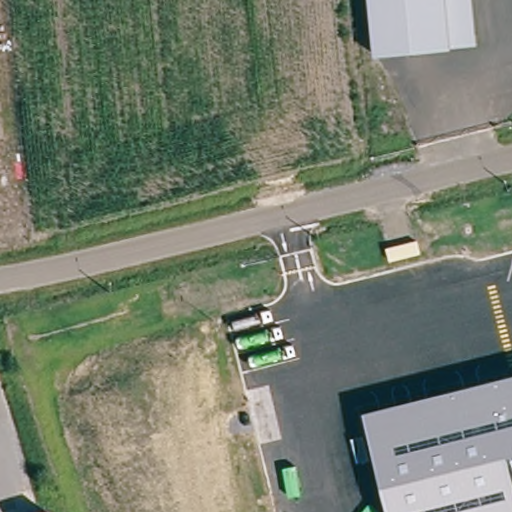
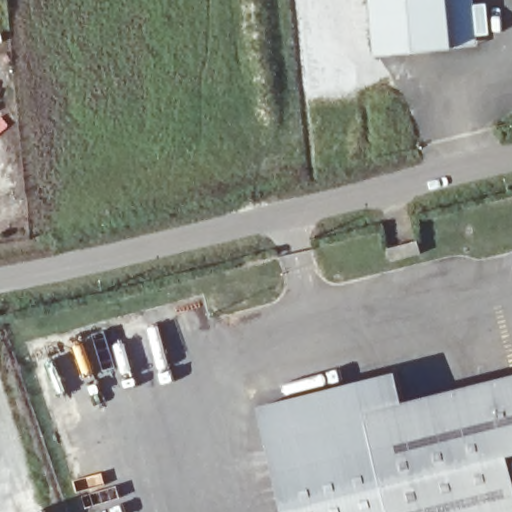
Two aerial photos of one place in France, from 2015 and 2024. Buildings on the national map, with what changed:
unchanged [(453,45),(416,49),(377,52),(372,0),(474,0),(477,33),(478,43),(453,45)]
new [(367,411),(392,512),(287,512),(261,407),(396,373),(403,402),(367,411)]
unchanged [(512,375),(512,512),(392,512),(367,411),(512,375)]

